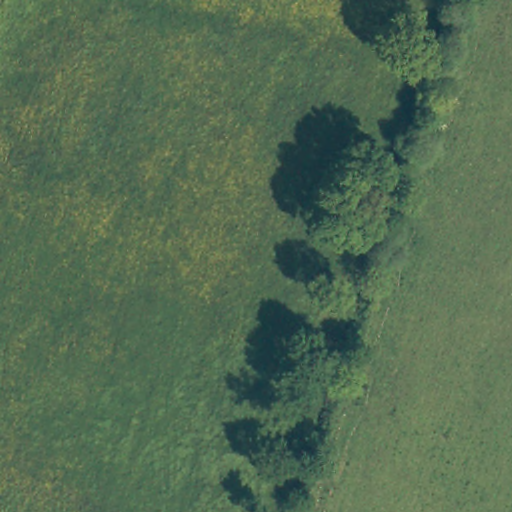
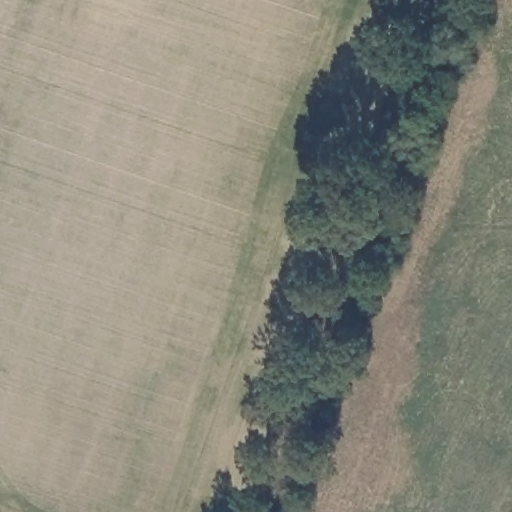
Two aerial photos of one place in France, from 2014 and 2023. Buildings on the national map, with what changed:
[]

